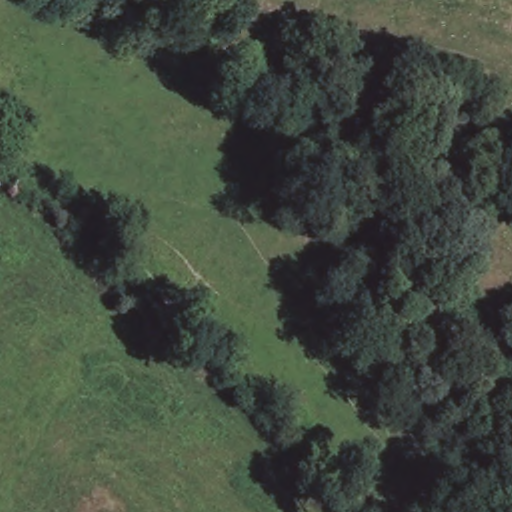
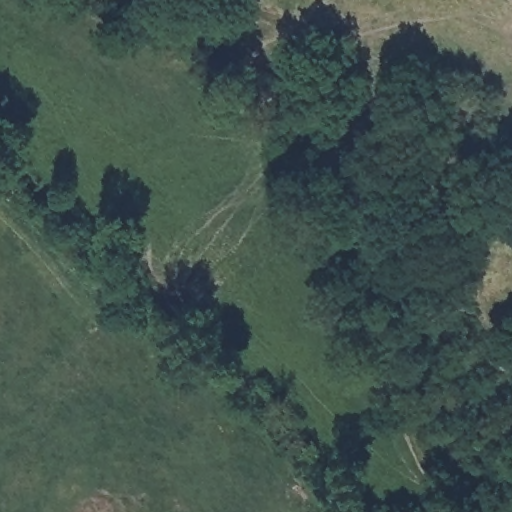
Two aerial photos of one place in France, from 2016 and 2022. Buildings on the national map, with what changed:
[]

